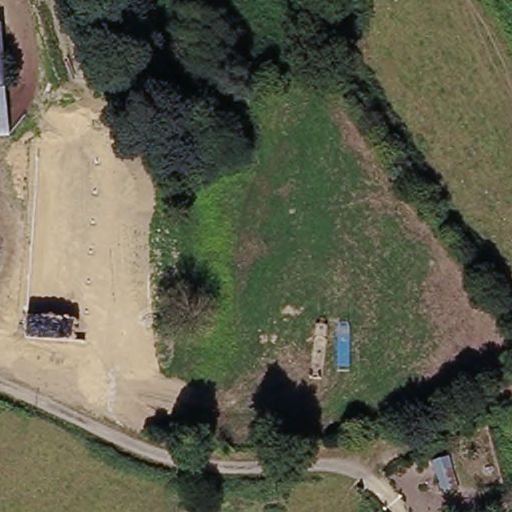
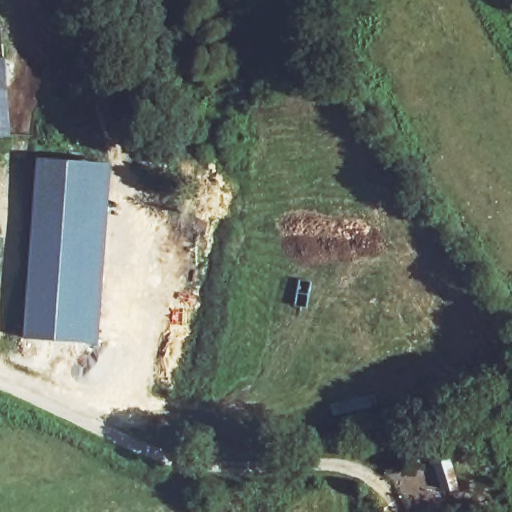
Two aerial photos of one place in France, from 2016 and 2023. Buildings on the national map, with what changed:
unchanged [(0,41),(0,21),(1,41),(0,41)]
unchanged [(14,74),(0,74),(0,40),(12,40),(14,74)]
unchanged [(17,152),(0,152),(0,74),(14,74),(17,152)]
new [(99,343),(25,338),(37,157),(112,162),(99,343)]
unchanged [(441,458),(460,451),(474,491),(454,488),(441,458)]

